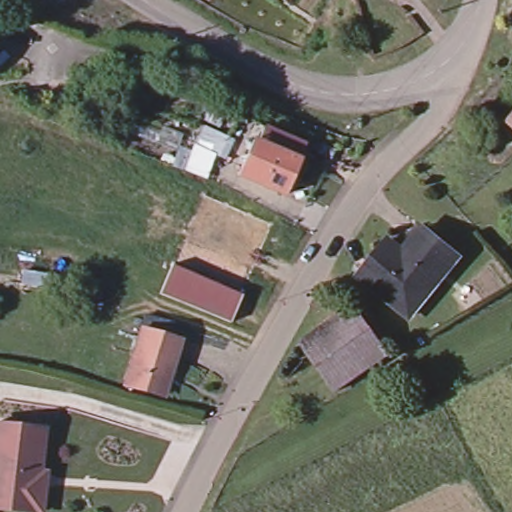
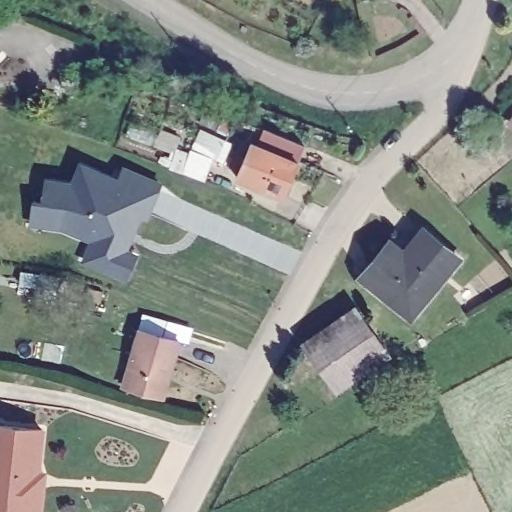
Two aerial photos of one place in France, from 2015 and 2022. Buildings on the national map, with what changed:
unchanged [(232,138),(224,161),(218,159),(210,181),(180,169),(187,147),(191,148),(199,126),(232,138)]
unchanged [(254,132),(294,150),(287,166),(272,201),(225,181),(240,146),(247,148),(254,132)]
new [(32,199),(42,200),(45,178),(71,181),(80,161),(118,177),(124,166),(162,182),(148,221),(142,219),(130,251),(139,254),(127,282),(82,263),(90,242),(60,232),(28,227),(32,199)]
demolished [(271,226),(240,297),(171,267),(201,196),(271,226)]
unchanged [(398,266),(428,229),(465,257),(416,317),(369,278),(387,257),(398,266)]
demolished [(240,297),(228,325),(159,296),(171,267),(240,297)]
unchanged [(388,349),(332,388),(305,350),(361,311),(388,349)]
unchanged [(162,397),(123,386),(135,347),(140,330),(181,341),(175,361),(172,370),(165,397),(162,397)]
unchanged [(48,482),(46,508),(0,504),(0,421),(47,426),(42,468),(50,469),(48,482)]

